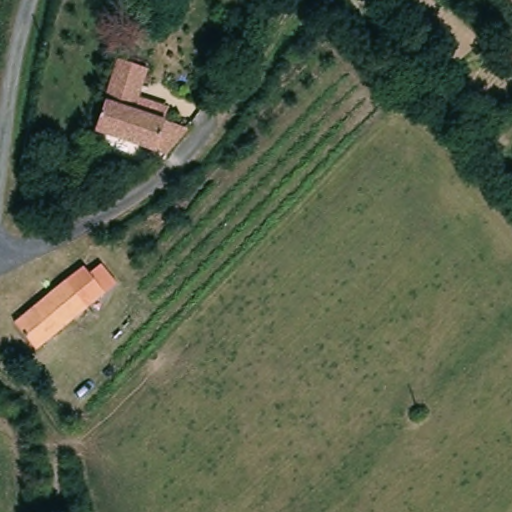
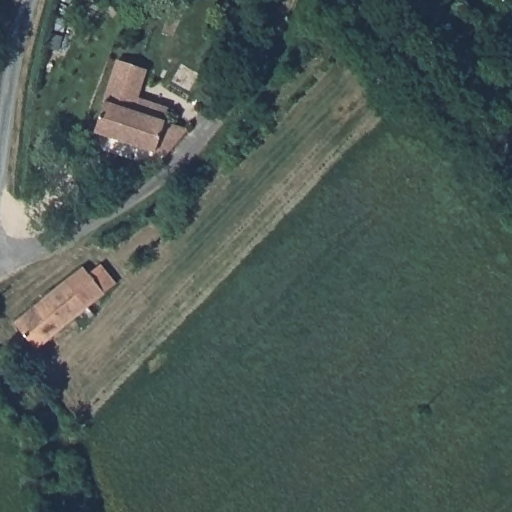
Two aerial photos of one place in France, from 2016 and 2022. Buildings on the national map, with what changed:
unchanged [(95,132),(116,65),(146,74),(134,113),(189,131),(184,137),(166,155),(95,132)]
unchanged [(15,321),(84,267),(88,271),(98,263),(115,285),(36,348),(15,321)]

